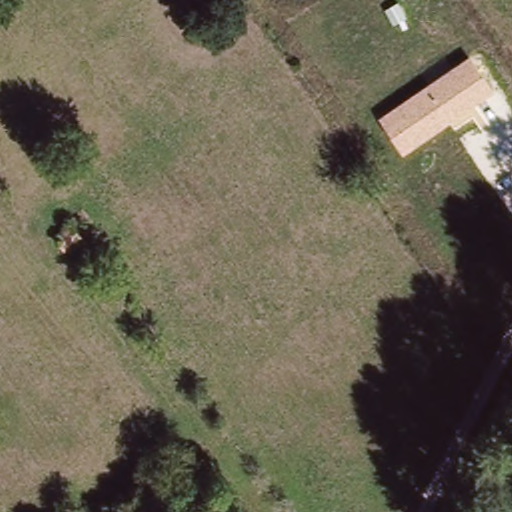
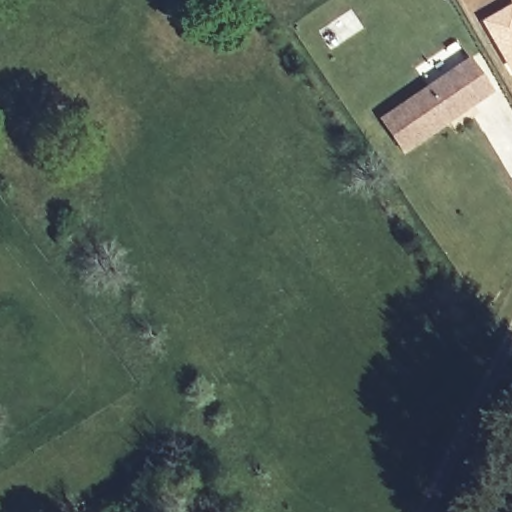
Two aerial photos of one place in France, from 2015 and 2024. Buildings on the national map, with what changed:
new [(481,19),(512,3),(512,75),(481,19)]
unchanged [(470,55),(496,93),(404,154),(380,117),(470,55)]

